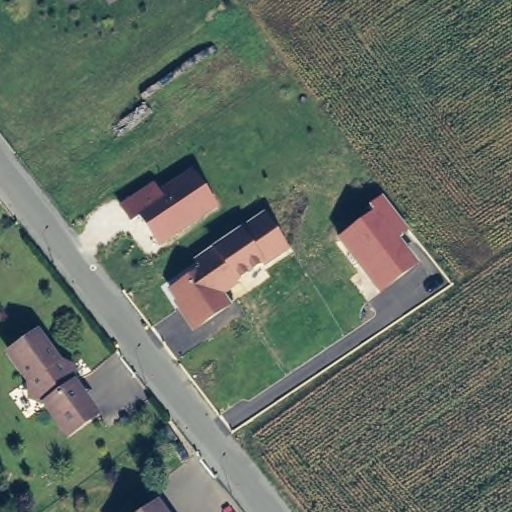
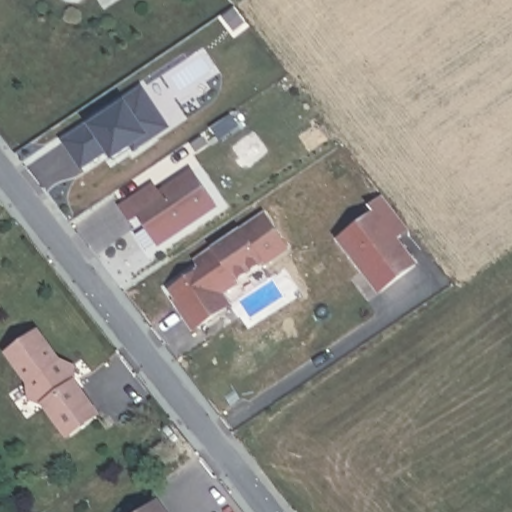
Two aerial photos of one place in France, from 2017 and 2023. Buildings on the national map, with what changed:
new [(233,9),(244,22),(233,30),(222,17),(233,9)]
new [(108,149),(83,166),(65,140),(91,122),(92,124),(127,102),(124,99),(142,87),(164,120),(147,132),(148,135),(114,157),(108,149)]
unchanged [(215,206),(157,247),(140,217),(128,224),(116,204),(152,181),(157,191),(190,169),(215,206)]
unchanged [(409,230),(400,238),(419,264),(379,294),(337,239),(375,211),(369,205),(382,195),(409,230)]
unchanged [(288,250),(224,293),(232,305),(194,330),(165,292),(197,270),(190,260),(262,211),(288,250)]
unchanged [(47,408),(31,402),(30,384),(10,358),(37,339),(56,365),(72,372),(73,389),(95,419),(68,438),(47,408)]
unchanged [(146,512),(157,504),(162,512),(146,512)]

